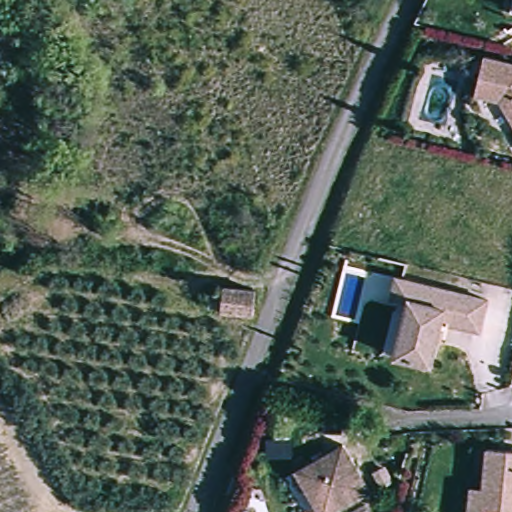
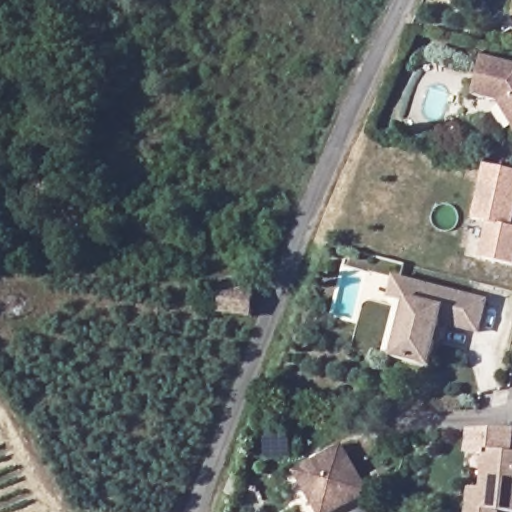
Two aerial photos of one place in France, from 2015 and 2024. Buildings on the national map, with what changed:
unchanged [(500,101),(477,96),(487,57),(512,64),(512,124),(500,101)]
new [(479,257),(487,223),(470,220),(483,164),(512,170),(512,227),(512,262),(479,257)]
unchanged [(477,332),(445,322),(445,318),(440,317),(429,366),(392,357),(407,298),(390,293),(394,277),(427,286),(484,300),(477,332)]
unchanged [(264,290),(255,316),(214,302),(217,283),(264,290)]
unchanged [(299,467),(350,441),(372,486),(320,511),(318,512),(309,512),(289,471),(299,467)]
unchanged [(470,490),(482,490),(485,447),(512,448),(512,506),(500,506),(499,512),(470,512),(470,490)]

